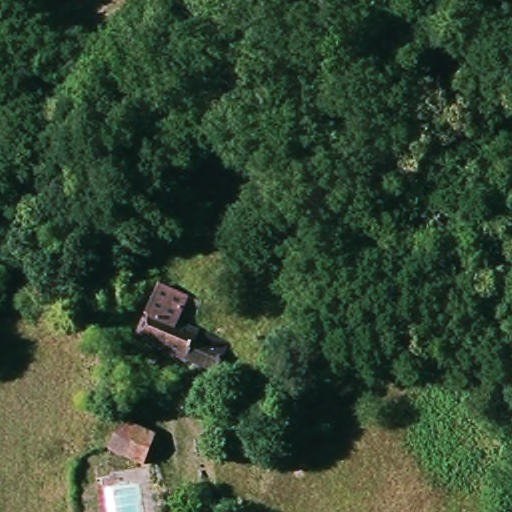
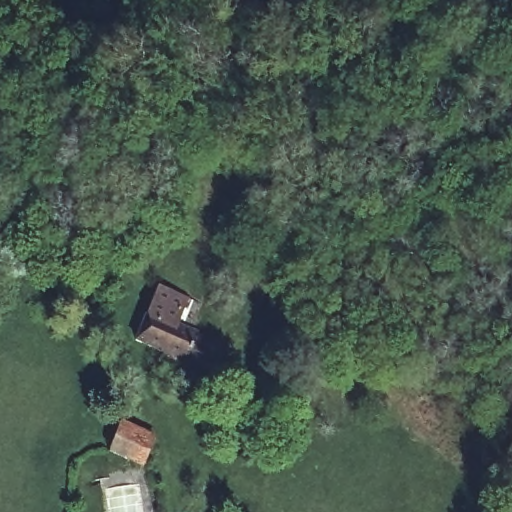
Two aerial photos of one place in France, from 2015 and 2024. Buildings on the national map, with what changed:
unchanged [(149,282),(194,297),(184,322),(222,338),(215,358),(224,361),(221,372),(131,335),(149,282)]
unchanged [(154,433),(141,462),(109,450),(120,420),(154,433)]

